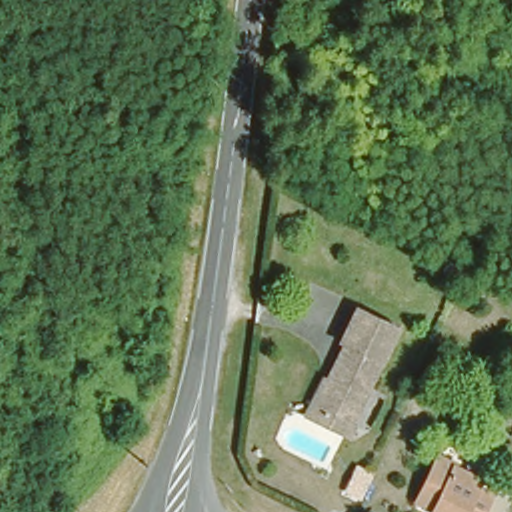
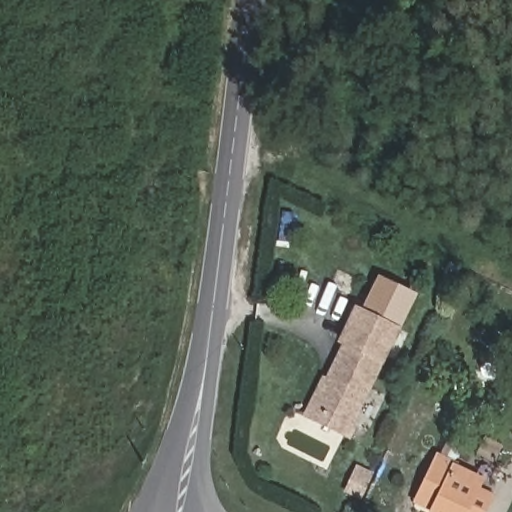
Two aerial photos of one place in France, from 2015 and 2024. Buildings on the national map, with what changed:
new [(418,295),(398,333),(392,330),(351,312),(355,305),(362,307),(378,275),(418,295)]
unchanged [(309,416),(324,385),(336,360),(330,357),(351,312),(392,330),(343,431),(309,416)]
unchanged [(437,450),(452,456),(450,460),(481,473),(476,485),(492,491),(483,512),(439,512),(428,507),(431,502),(416,495),(437,450)]

